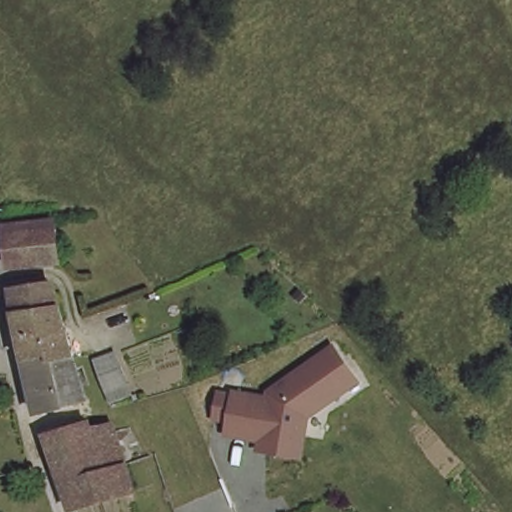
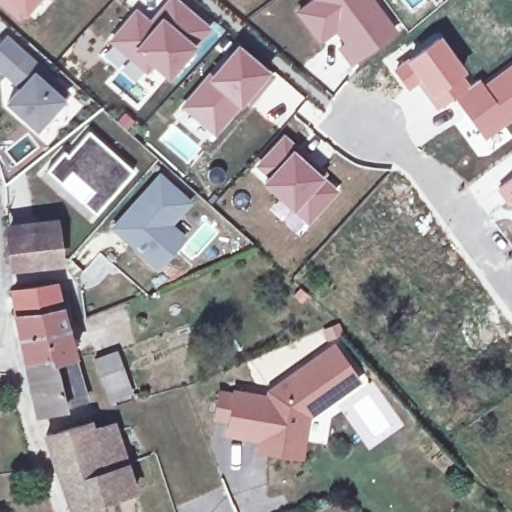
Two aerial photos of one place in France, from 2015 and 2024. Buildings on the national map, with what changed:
new [(16,19),(0,6),(0,0),(33,0),(16,19)]
new [(394,33),(351,65),(341,50),(347,45),(315,2),(318,0),(370,0),(394,33)]
new [(146,72),(132,60),(112,43),(136,15),(150,27),(172,1),(208,31),(168,78),(138,52),(153,65),(146,72)]
new [(336,31),(320,42),(299,14),(315,2),(336,31)]
new [(439,33),(465,68),(461,72),(470,84),(454,98),(436,109),(417,84),(408,90),(393,70),(439,33)]
new [(203,124),(184,108),(211,79),(213,80),(238,50),(272,79),(255,98),(249,105),(244,100),(250,93),(225,123),(215,135),(203,124)]
new [(19,88),(6,76),(24,56),(66,94),(34,129),(6,103),(19,88)]
new [(470,84),(479,77),(483,83),(512,62),(512,119),(484,138),(454,98),(470,84)]
new [(61,152),(71,153),(88,131),(136,175),(96,220),(80,204),(44,170),(61,152)]
new [(311,164),(307,168),(335,193),(309,223),(254,173),(284,141),(311,164)]
new [(324,176),(320,180),(307,168),(311,164),(324,176)]
new [(158,177),(187,204),(167,226),(181,240),(154,269),(110,229),(158,177)]
new [(512,177),(512,208),(497,189),(512,177)]
unchanged [(58,228),(61,260),(11,263),(10,233),(58,228)]
unchanged [(61,328),(23,333),(22,333),(14,291),(55,285),(67,326),(63,327),(61,328)]
unchanged [(22,333),(23,333),(61,328),(63,327),(67,326),(75,355),(68,356),(26,356),(22,333)]
unchanged [(266,454),(268,444),(234,438),(236,425),(223,422),(226,398),(241,400),(241,397),(275,403),(276,396),(340,351),(364,385),(318,418),(314,417),(311,435),(307,461),(266,454)]
unchanged [(111,402),(107,392),(95,360),(117,352),(129,384),(133,394),(111,402)]
unchanged [(68,356),(75,355),(88,400),(35,412),(26,356),(68,356)]
unchanged [(88,423),(93,437),(116,429),(136,491),(71,510),(44,437),(88,423)]

